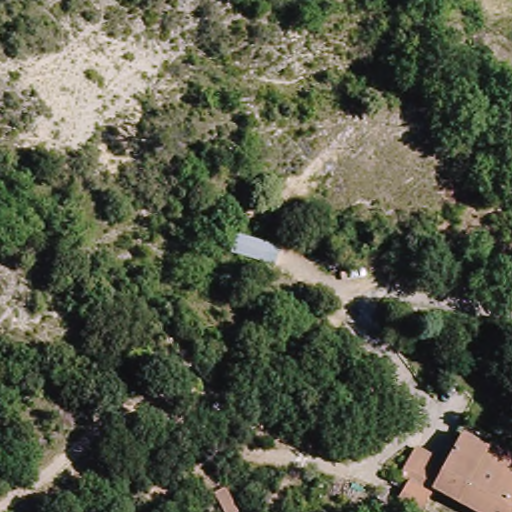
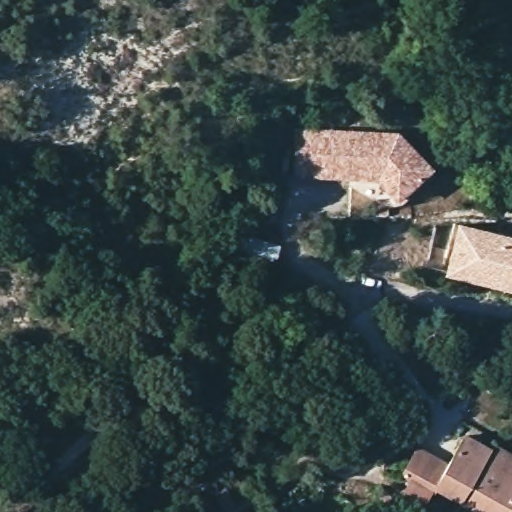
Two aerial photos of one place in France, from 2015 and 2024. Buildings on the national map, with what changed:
new [(295,128),(397,130),(433,167),(397,200),(376,180),(293,178),(295,128)]
new [(446,277),(458,224),(512,235),(512,291),(446,277)]
new [(236,233),(279,246),(275,263),(231,250),(236,233)]
unchanged [(437,493),(434,499),(402,481),(419,452),(449,469),(466,439),(491,453),(494,447),(512,456),(512,475),(509,479),(512,481),(512,512),(470,512),(437,493)]

